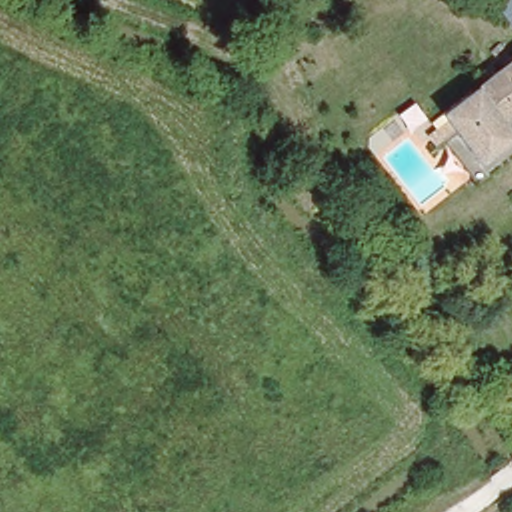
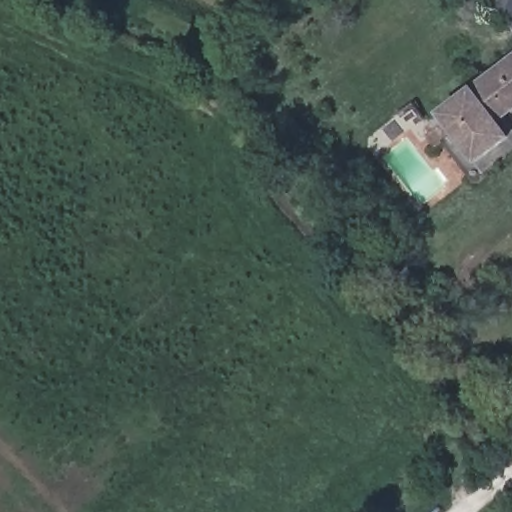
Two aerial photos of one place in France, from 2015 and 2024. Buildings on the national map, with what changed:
unchanged [(466,93),(512,59),(512,109),(487,126),(466,93)]
unchanged [(487,126),(508,159),(474,182),(432,118),(466,93),(487,126)]

